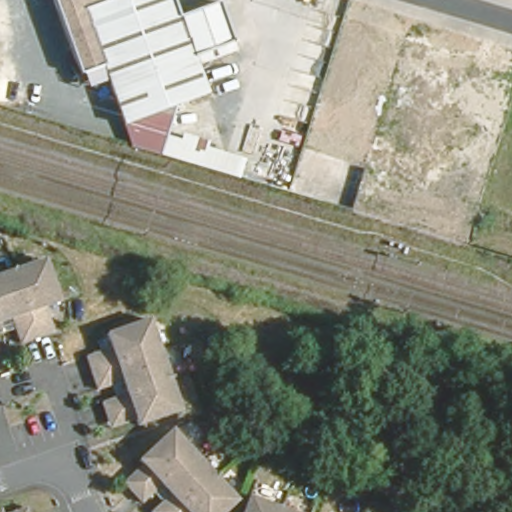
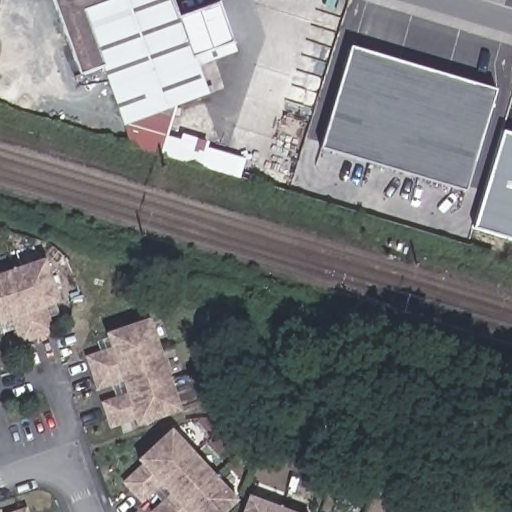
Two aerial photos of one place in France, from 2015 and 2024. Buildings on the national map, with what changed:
unchanged [(76,77),(46,0),(169,0),(176,20),(218,6),(235,56),(194,69),(204,97),(172,109),(157,161),(150,158),(131,152),(106,87),(74,91),(70,80),(76,77)]
new [(495,89),(465,192),(322,149),(351,47),(495,89)]
new [(512,133),(512,241),(473,229),(503,131),(512,133)]
unchanged [(13,321),(0,325),(0,277),(43,262),(59,305),(54,307),(45,310),(54,335),(22,346),(13,321)]
unchanged [(113,415),(106,400),(130,391),(125,377),(101,387),(87,355),(111,346),(106,332),(147,318),(180,405),(142,420),(140,415),(116,423),(113,415)]
unchanged [(153,507),(172,490),(163,480),(144,497),(133,485),(127,478),(146,461),(142,456),(171,430),(236,497),(220,512),(157,512),(153,507)]
unchanged [(249,493),(295,512),(242,512),(249,493)]
unchanged [(28,507),(30,512),(13,512),(28,507)]
unchanged [(0,511),(1,510),(2,512),(0,512),(0,511)]

